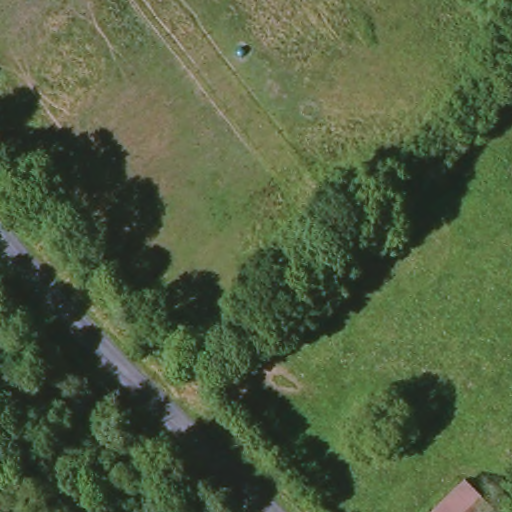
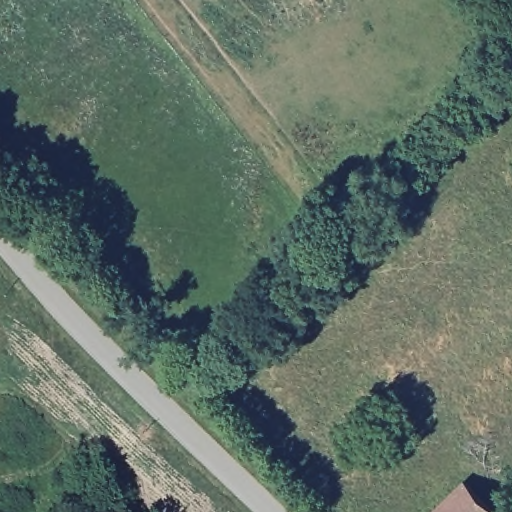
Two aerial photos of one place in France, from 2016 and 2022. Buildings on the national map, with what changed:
unchanged [(494,512),(436,512),(465,483),(494,512)]

